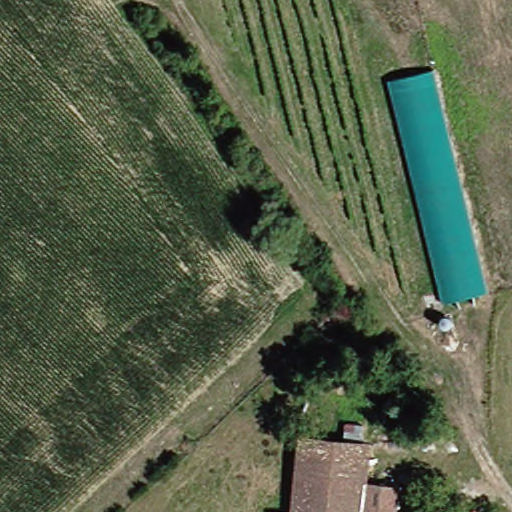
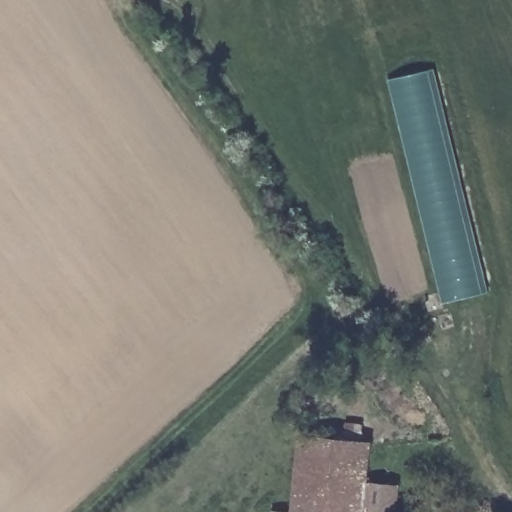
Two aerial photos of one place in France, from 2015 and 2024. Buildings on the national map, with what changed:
unchanged [(448,303),(393,81),(440,69),(496,290),(448,303)]
unchanged [(299,511),(302,435),(373,438),(372,480),(401,483),(400,512),(279,512),(279,511),(299,511)]

